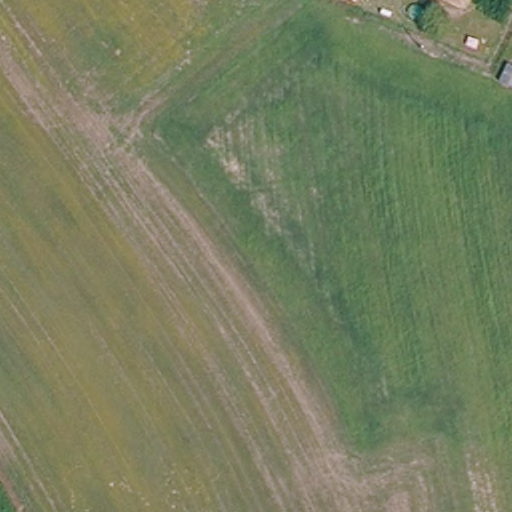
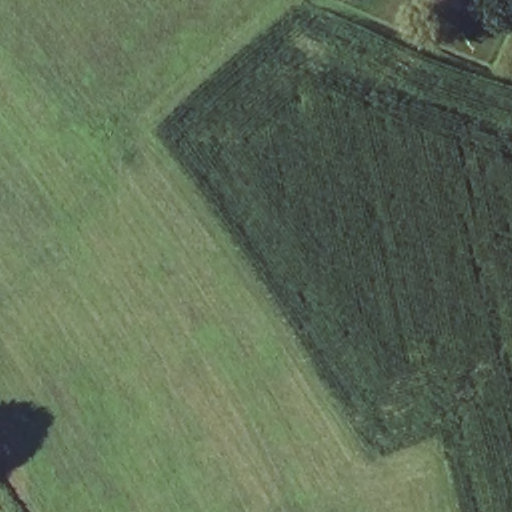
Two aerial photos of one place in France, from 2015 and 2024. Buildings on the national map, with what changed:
unchanged [(455,8),(438,0),(459,0),(455,8)]

